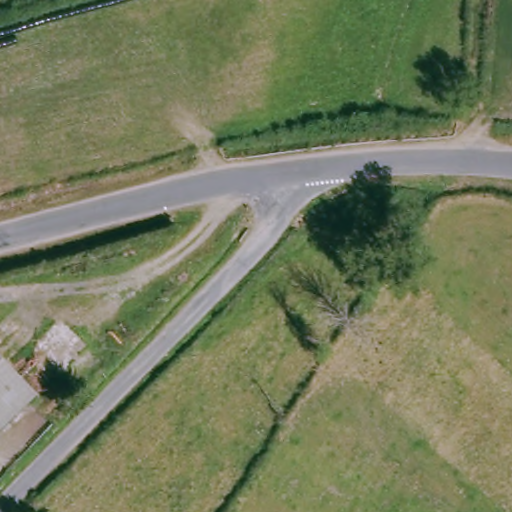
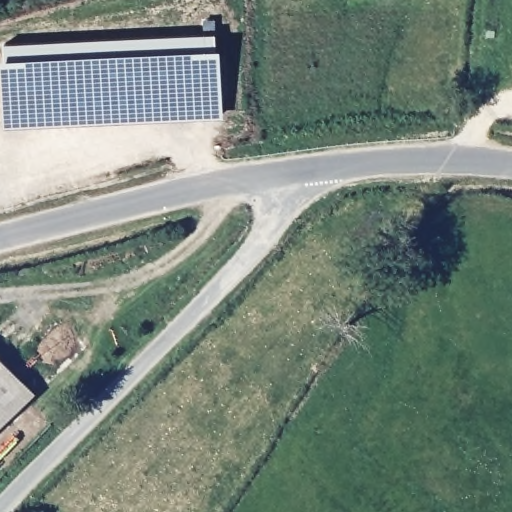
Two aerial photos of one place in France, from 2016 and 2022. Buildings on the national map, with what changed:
new [(4,128),(0,59),(3,58),(3,43),(214,31),(216,47),(219,46),(222,114),(4,128)]
unchanged [(39,395),(0,433),(0,354),(39,395)]

